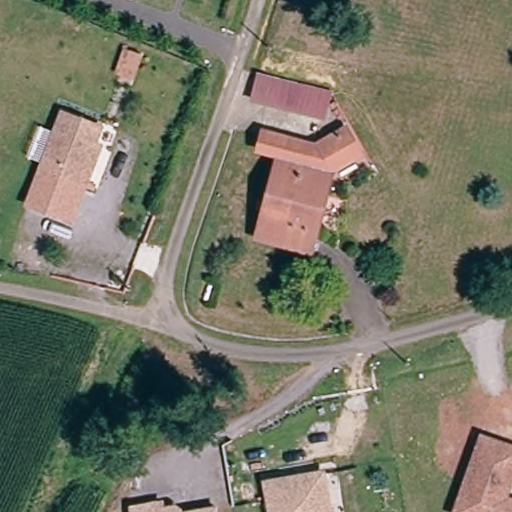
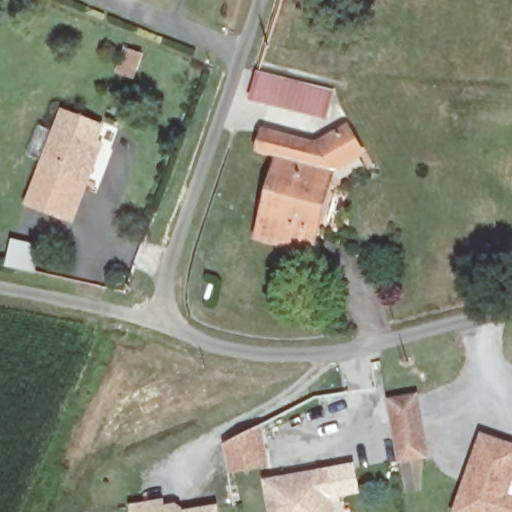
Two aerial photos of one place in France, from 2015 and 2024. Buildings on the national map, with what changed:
unchanged [(333,93),(330,113),(247,98),(255,80),(333,93)]
unchanged [(85,173),(88,175),(74,211),(32,196),(60,119),(99,133),(85,173)]
unchanged [(366,170),(337,181),(330,199),(323,197),(305,238),(296,235),(289,251),(254,234),(286,158),(266,149),(276,131),(295,140),(325,155),(358,141),(366,170)]
new [(419,394),(430,458),(399,464),(388,398),(419,394)]
new [(270,468),(230,475),(225,444),(263,426),(270,468)]
unchanged [(488,434),(512,442),(512,486),(508,495),(512,496),(512,512),(468,512),(460,509),(488,434)]
unchanged [(323,471),(333,512),(269,512),(263,483),(323,471)]
unchanged [(162,499),(165,504),(180,502),(185,511),(216,506),(217,512),(131,512),(130,506),(162,499)]

